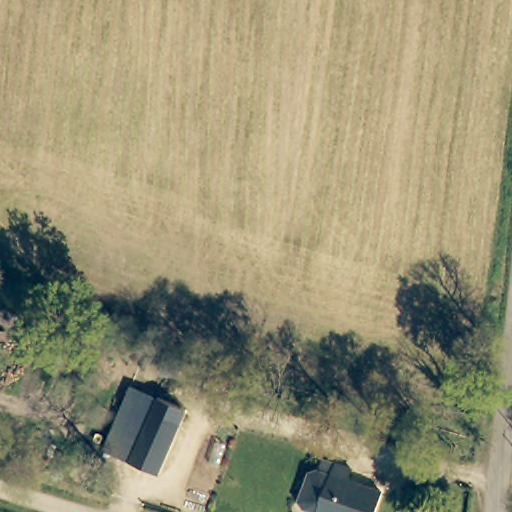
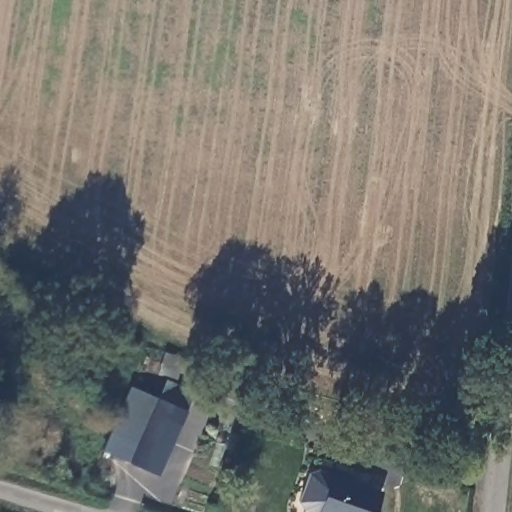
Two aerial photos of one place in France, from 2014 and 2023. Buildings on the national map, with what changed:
unchanged [(127,462),(104,450),(130,387),(155,398),(127,462)]
unchanged [(154,474),(127,462),(155,398),(182,410),(154,474)]
unchanged [(359,465),(354,477),(388,489),(380,512),(328,512),(311,506),(307,497),(316,472),(324,467),(338,472),(343,460),(359,465)]

